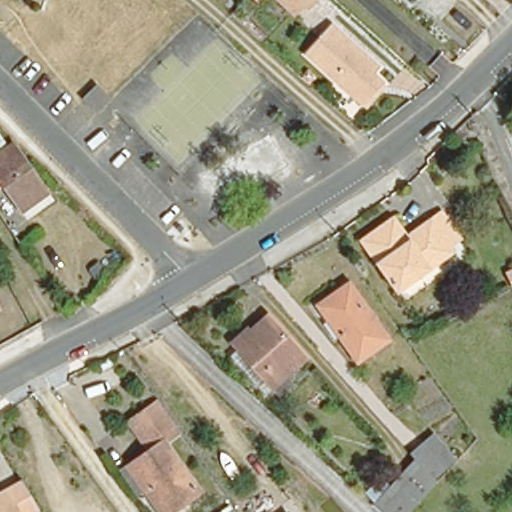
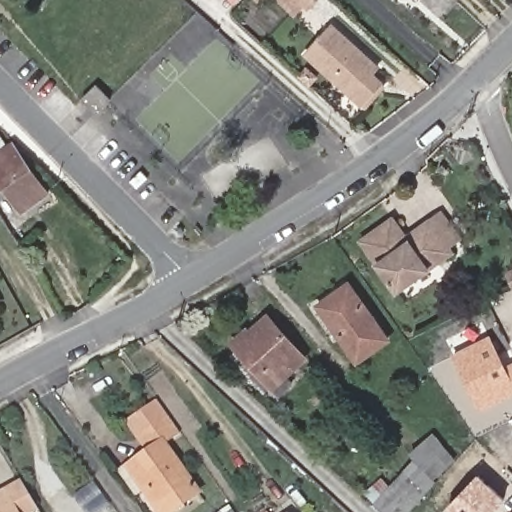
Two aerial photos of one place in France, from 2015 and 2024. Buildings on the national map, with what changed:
unchanged [(306,5),(298,0),(310,0),(306,5)]
unchanged [(297,53),(324,23),(372,67),(366,74),(377,84),(357,106),(297,53)]
unchanged [(456,59),(452,62),(448,58),(452,54),(456,59)]
unchanged [(96,113),(82,99),(97,85),(110,99),(96,113)]
unchanged [(49,200),(21,219),(1,191),(0,191),(0,156),(14,147),(49,200)]
unchanged [(428,215),(435,211),(452,238),(442,245),(441,245),(445,251),(386,291),(353,239),(386,217),(397,235),(409,228),(423,219),(428,215)]
unchanged [(512,266),(512,278),(507,268),(512,266)]
unchanged [(317,303),(333,292),(351,280),(389,338),(357,361),(320,308),(317,303)]
unchanged [(277,397),(271,389),(232,344),(247,331),(247,333),(267,316),(304,360),(282,379),(288,387),(277,397)]
new [(506,365),(512,363),(512,395),(479,411),(452,355),(491,335),(506,365)]
unchanged [(134,469),(151,457),(127,421),(158,401),(181,436),(166,447),(202,499),(191,507),(184,512),(158,512),(130,472),(134,469)]
unchanged [(411,455),(425,443),(436,434),(457,458),(446,467),(432,479),(436,483),(408,512),(381,512),(370,501),(412,457),(411,455)]
new [(480,473),(507,498),(494,512),(451,512),(447,507),(480,473)]
unchanged [(16,481),(33,508),(27,512),(0,512),(0,491),(16,481)]
unchanged [(233,512),(215,512),(227,503),(233,512)]

